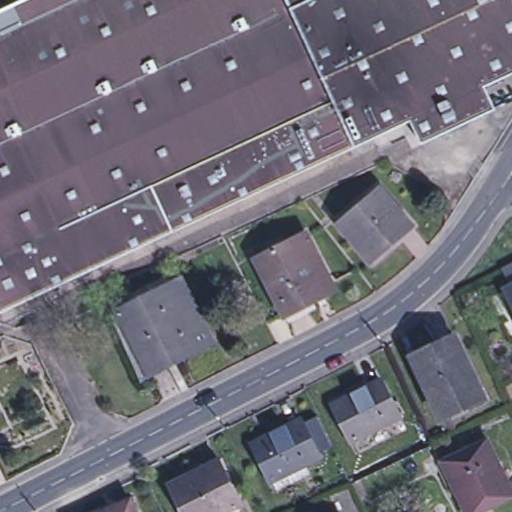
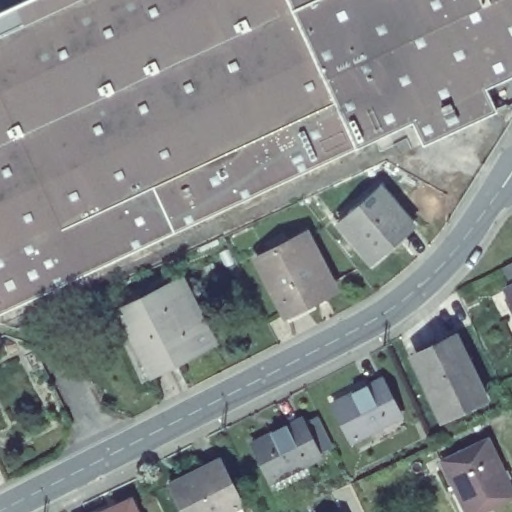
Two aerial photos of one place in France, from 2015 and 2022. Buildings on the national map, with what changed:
unchanged [(492,107),(419,142),(408,119),(0,314),(0,11),(24,0),(512,0),(512,69),(482,84),(492,107)]
unchanged [(361,202),(365,206),(382,191),(410,223),(370,258),(338,222),(361,202)]
unchanged [(304,234),(330,284),(302,299),(305,306),(286,315),(257,259),(304,234)]
unchanged [(512,267),(512,273),(510,268),(512,267)]
unchanged [(180,282),(211,343),(152,373),(120,311),(180,282)]
unchanged [(512,288),(512,290),(511,288),(512,288)]
unchanged [(455,340),(484,399),(443,418),(430,392),(433,391),(417,358),(455,340)]
unchanged [(382,378),(400,416),(351,440),(333,403),(382,378)]
unchanged [(272,488),(268,480),(266,481),(248,443),(297,420),(299,423),(310,418),(325,447),(313,452),(315,457),(301,463),(305,473),(272,488)]
unchanged [(512,493),(512,495),(478,512),(466,512),(441,461),(486,439),(512,493)]
unchanged [(220,460),(243,505),(229,512),(187,512),(172,483),(220,460)]
unchanged [(137,512),(102,512),(130,499),(137,512)]

